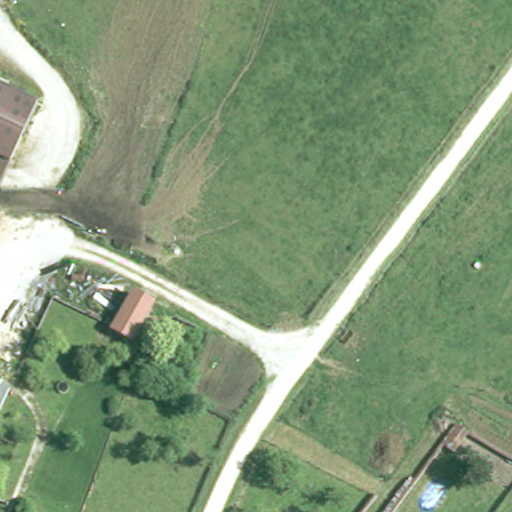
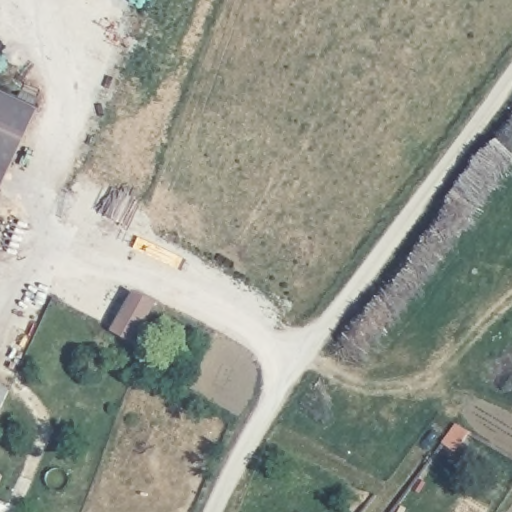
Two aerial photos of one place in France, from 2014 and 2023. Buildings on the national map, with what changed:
unchanged [(0,194),(0,87),(39,105),(0,194)]
unchanged [(127,333),(117,323),(122,318),(138,302),(150,307),(127,333)]
unchanged [(0,410),(0,386),(9,390),(0,410)]
unchanged [(470,431),(454,452),(441,443),(456,424),(470,431)]
unchanged [(0,480),(0,475),(2,476),(0,480)]

